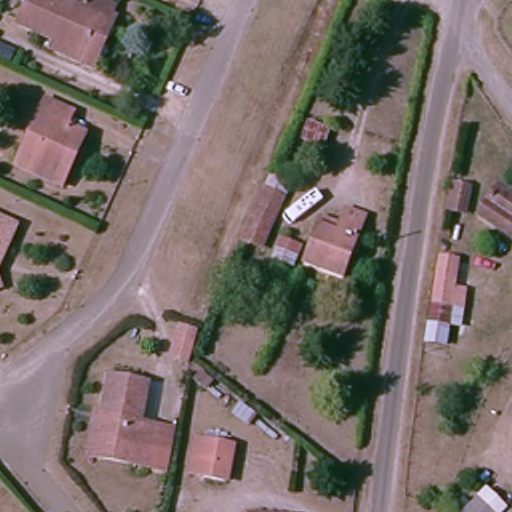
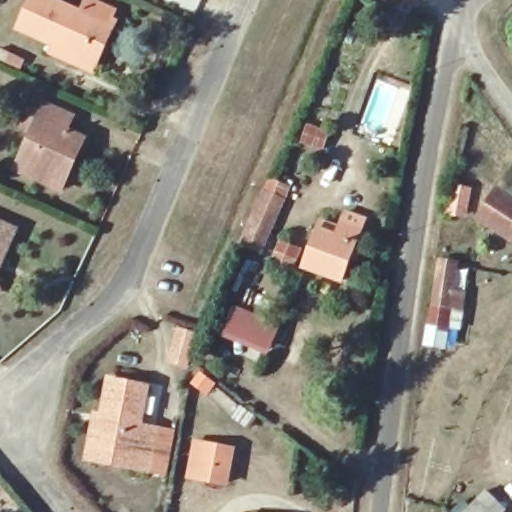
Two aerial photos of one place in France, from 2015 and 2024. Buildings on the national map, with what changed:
unchanged [(21,31),(34,0),(47,0),(65,7),(50,43),(21,31)]
unchanged [(86,15),(93,2),(121,13),(99,63),(50,43),(65,7),(86,15)]
unchanged [(75,112),(70,125),(88,132),(65,186),(21,165),(35,131),(22,125),(30,104),(44,111),(49,100),(75,112)]
unchanged [(450,179),(467,180),(463,208),(448,205),(450,179)]
unchanged [(498,183),(512,193),(512,230),(483,212),(498,183)]
unchanged [(264,191),(283,197),(264,244),(247,238),(264,191)]
unchanged [(307,263),(319,231),(325,216),(344,223),(349,211),(368,217),(362,231),(343,277),(307,263)]
unchanged [(9,251),(5,261),(0,259),(0,218),(20,228),(9,251)]
unchanged [(437,258),(457,261),(448,347),(428,344),(437,258)]
unchanged [(0,290),(0,281),(3,289),(0,290)]
new [(269,352),(224,334),(237,304),(282,321),(269,352)]
unchanged [(192,369),(177,366),(184,334),(200,340),(194,357),(192,369)]
unchanged [(150,468),(134,465),(135,452),(97,447),(106,378),(144,384),(139,424),(155,426),(173,429),(168,471),(150,468)]
unchanged [(230,478),(204,475),(193,473),(196,440),(209,442),(234,446),(230,478)]
unchanged [(483,502),(493,512),(473,512),(483,502)]
unchanged [(244,510),(260,512),(244,512),(244,510)]

